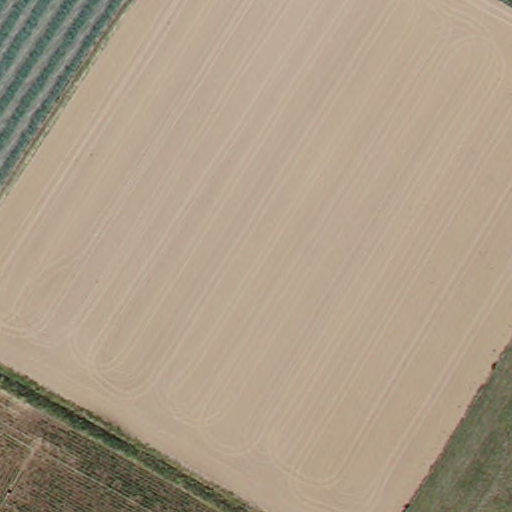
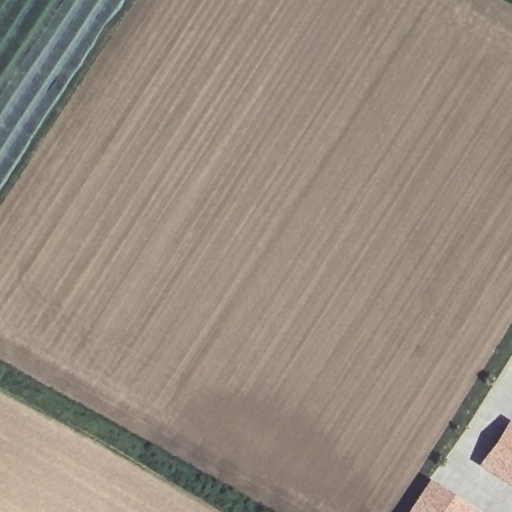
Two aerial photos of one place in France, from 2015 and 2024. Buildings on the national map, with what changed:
new [(502,423),(512,429),(512,490),(475,467),(502,423)]
new [(468,512),(404,512),(423,483),(468,512)]

